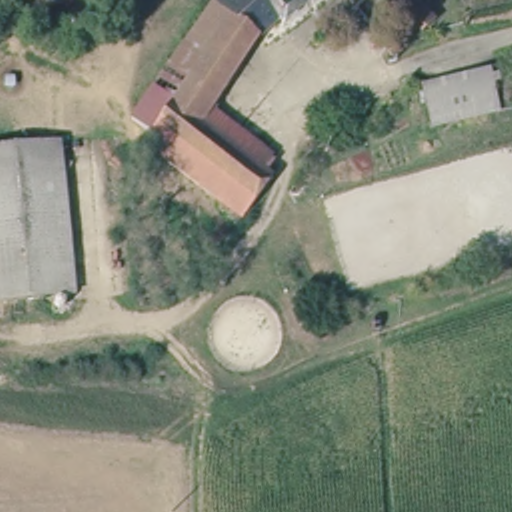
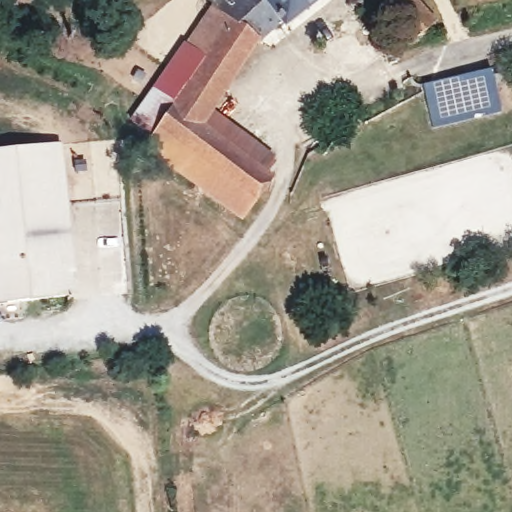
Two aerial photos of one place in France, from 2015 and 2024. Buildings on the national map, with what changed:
unchanged [(285,25),(278,22),(261,35),(216,107),(276,155),(267,168),(273,173),(242,215),(141,142),(150,131),(128,117),(212,1),(210,0),(316,0),(285,25)]
unchanged [(409,40),(389,19),(395,12),(382,0),(413,0),(433,21),(418,36),(409,40)]
unchanged [(493,64),(496,71),(503,70),(505,78),(499,80),(506,108),(436,124),(426,80),(493,64)]
unchanged [(61,140),(76,290),(0,297),(0,146),(61,140)]

